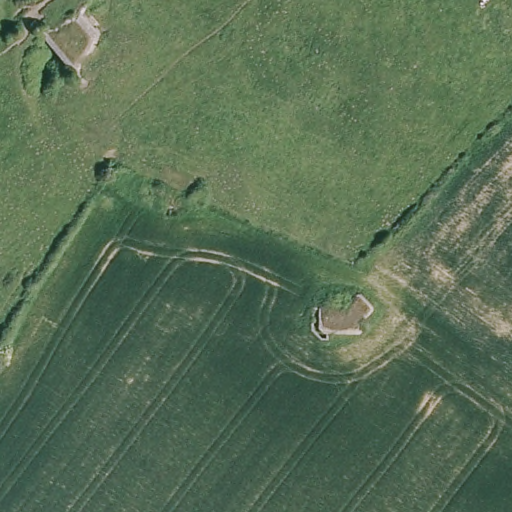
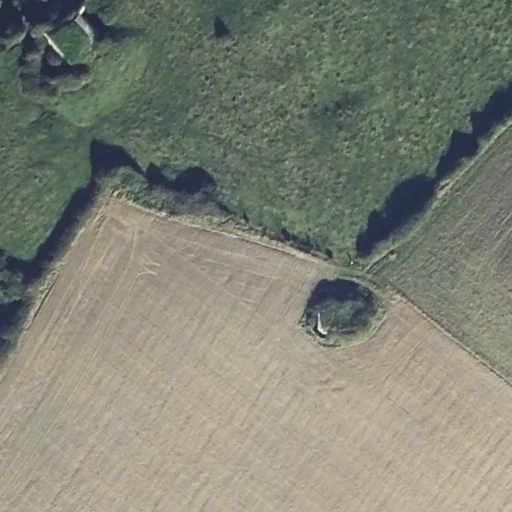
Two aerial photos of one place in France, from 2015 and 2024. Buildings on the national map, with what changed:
unchanged [(36,25),(64,22),(72,11),(95,34),(76,55),(74,74),(36,25)]
unchanged [(317,303),(339,303),(349,287),(369,305),(354,315),(355,327),(315,325),(317,303)]

